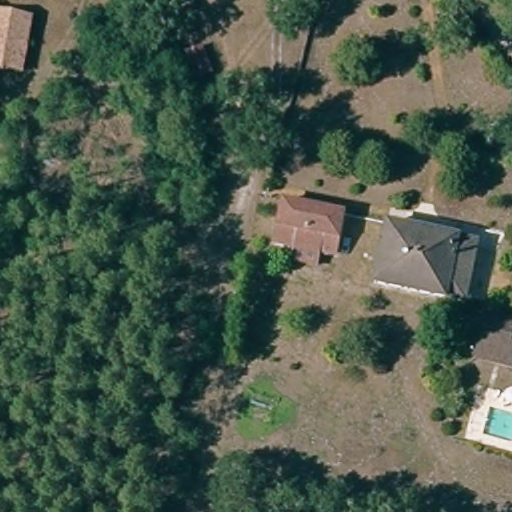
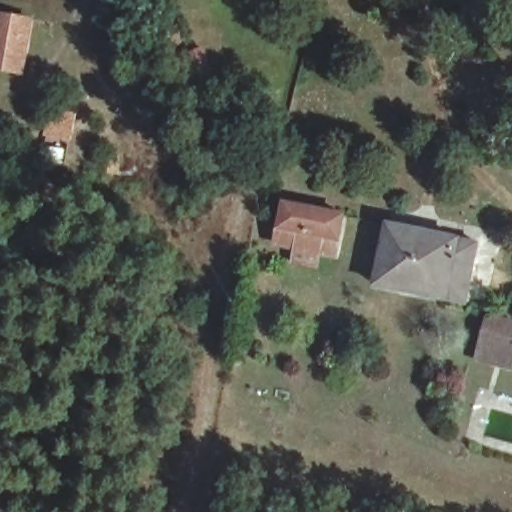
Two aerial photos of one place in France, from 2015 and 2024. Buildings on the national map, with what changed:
unchanged [(21,74),(0,71),(0,18),(29,22),(21,74)]
unchanged [(340,259),(322,256),(321,272),(291,267),(293,252),(269,247),(280,202),(349,214),(340,259)]
unchanged [(445,297),(380,286),(391,221),(479,237),(472,280),(467,307),(444,302),(445,297)]
unchanged [(504,362),(479,355),(488,322),(512,328),(512,341),(504,362)]

